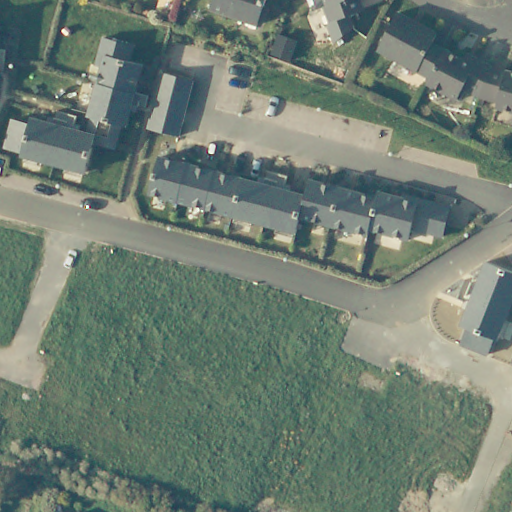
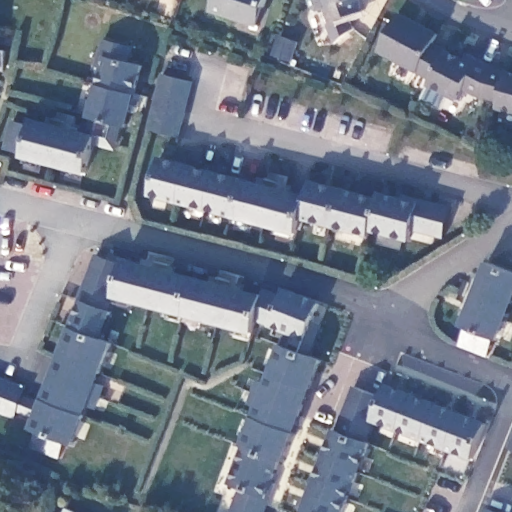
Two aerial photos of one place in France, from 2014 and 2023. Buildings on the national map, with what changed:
unchanged [(252,23),(209,10),(212,0),(264,0),(262,6),(257,25),(252,23)]
unchanged [(367,9),(335,21),(327,0),(364,0),(367,9)]
unchanged [(376,54),(396,17),(434,38),(430,47),(442,54),(427,82),(376,54)]
unchanged [(29,124),(31,117),(57,124),(60,114),(76,117),(74,128),(85,130),(89,116),(102,69),(95,67),(104,40),(132,48),(128,63),(142,66),(127,127),(122,126),(115,152),(93,146),(85,175),(20,158),(21,153),(2,149),(10,119),(29,124)]
unchanged [(427,82),(442,54),(462,63),(465,58),(490,71),(478,101),(460,93),(455,103),(425,87),(427,82)]
unchanged [(512,77),(512,116),(495,111),(496,105),(478,101),(490,71),(512,77)]
unchanged [(162,72),(194,80),(180,137),(147,129),(162,72)]
unchanged [(304,194),(307,179),(377,197),(378,191),(417,200),(450,208),(443,239),(411,232),(409,240),(369,232),(368,236),(301,219),(297,233),(150,197),(159,157),(304,194)]
new [(26,388),(42,393),(67,327),(80,300),(94,255),(120,264),(121,258),(262,294),(252,334),(112,299),(106,311),(111,313),(101,339),(112,344),(97,382),(105,385),(95,410),(87,407),(71,446),(65,444),(58,459),(29,448),(35,432),(27,429),(31,417),(16,412),(12,419),(0,413),(0,377),(26,388)]
unchanged [(512,303),(497,338),(489,356),(460,347),(460,346),(467,328),(465,327),(461,326),(486,263),(512,272),(512,303)]
new [(305,337),(311,340),(305,356),(318,361),(280,461),(263,496),(259,512),(230,512),(238,486),(228,483),(280,346),(285,330),(268,324),(283,291),(317,303),(305,337)]
new [(371,419),(361,442),(367,444),(341,512),(302,512),(301,512),(332,431),(335,432),(353,389),(381,398),(385,386),(483,423),(472,458),(371,419)]

